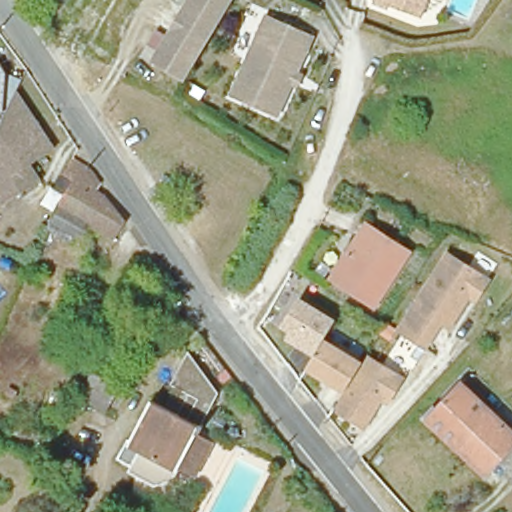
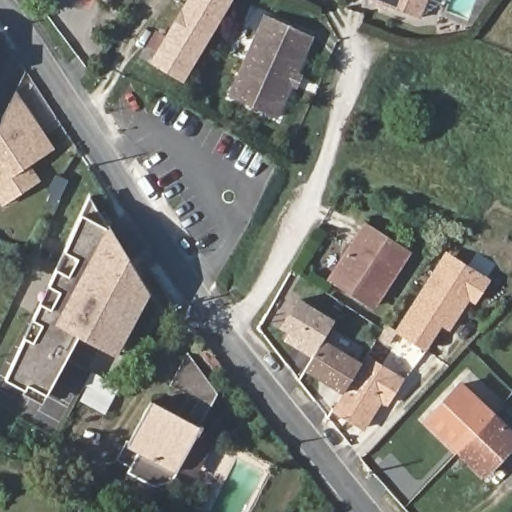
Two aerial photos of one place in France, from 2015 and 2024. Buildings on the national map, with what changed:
unchanged [(150,61),(185,0),(226,0),(180,79),(150,61)]
unchanged [(419,18),(373,0),(427,0),(422,11),(419,18)]
unchanged [(427,0),(441,0),(422,11),(427,0)]
unchanged [(307,38),(272,117),(226,97),(260,18),(307,38)]
demolished [(5,69),(0,109),(0,63),(5,69)]
unchanged [(0,193),(0,122),(5,109),(15,88),(52,145),(27,161),(38,177),(16,191),(4,199),(0,193)]
demolished [(57,197),(62,188),(65,182),(70,172),(62,166),(72,150),(73,149),(92,160),(100,176),(96,182),(105,188),(124,211),(120,215),(112,229),(90,216),(82,229),(50,211),(57,197)]
new [(83,213),(90,197),(110,224),(150,292),(116,355),(79,335),(46,394),(42,403),(22,393),(25,390),(7,377),(83,213)]
unchanged [(330,278),(364,224),(408,253),(372,306),(330,278)]
unchanged [(434,270),(440,274),(452,254),(488,277),(475,298),(468,294),(449,325),(441,320),(425,345),(397,327),(434,270)]
new [(298,299),(334,322),(313,354),(287,336),(290,331),(281,325),(298,299)]
demolished [(117,344),(125,330),(131,316),(156,329),(149,343),(141,357),(117,344)]
unchanged [(120,456),(125,447),(135,429),(151,401),(169,410),(179,392),(169,386),(185,354),(216,396),(201,426),(202,428),(198,437),(195,435),(175,473),(171,481),(153,488),(126,473),(130,468),(118,461),(120,456)]
unchanged [(340,395),(365,357),(401,381),(392,396),(386,405),(385,404),(380,401),(361,429),(331,410),(340,395)]
unchanged [(426,419),(460,385),(512,434),(512,446),(486,474),(426,419)]
unchanged [(81,399),(88,387),(111,399),(105,412),(81,399)]
demolished [(3,398),(9,388),(16,392),(10,402),(3,398)]

